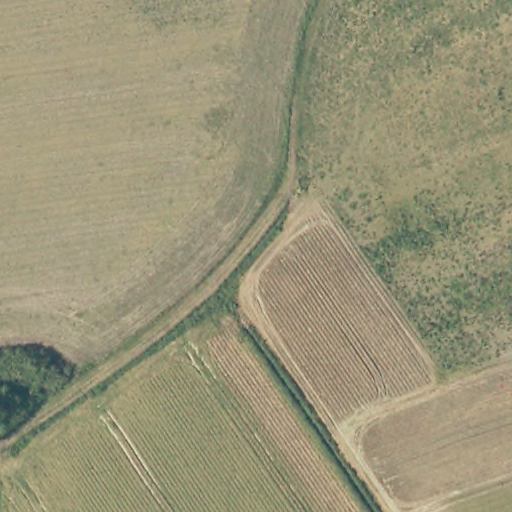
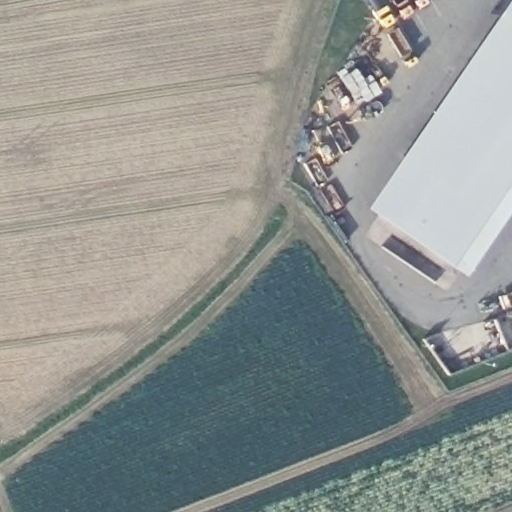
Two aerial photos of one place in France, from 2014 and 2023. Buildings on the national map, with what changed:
new [(501,0),(512,0),(512,198),(460,273),(360,206),(501,0)]

